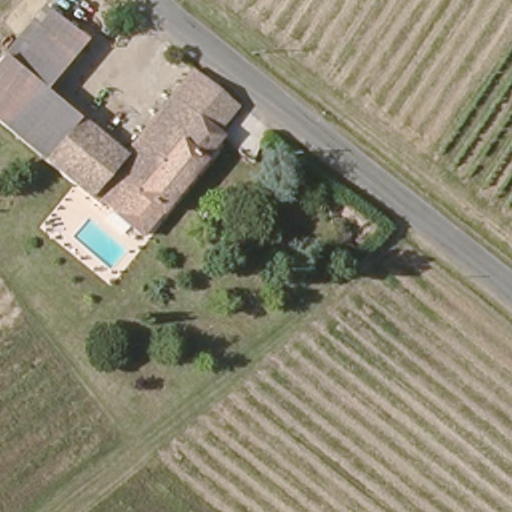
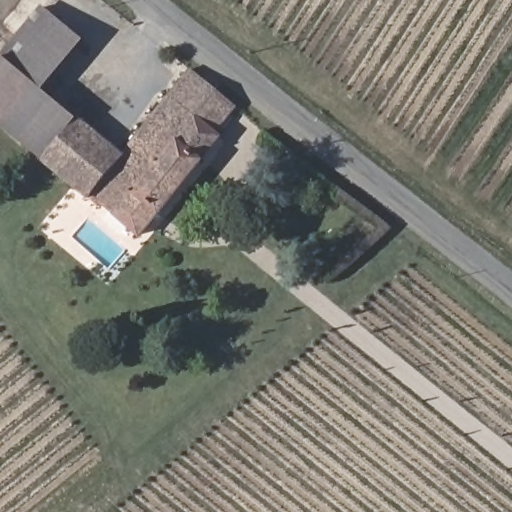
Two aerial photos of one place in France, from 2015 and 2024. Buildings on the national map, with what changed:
unchanged [(0,67),(47,11),(85,41),(47,86),(86,118),(46,161),(0,121),(0,67)]
unchanged [(223,134),(177,97),(199,70),(245,108),(223,134)]
unchanged [(46,161),(86,118),(128,157),(177,97),(223,134),(226,137),(145,240),(109,207),(104,212),(82,193),(46,161)]

